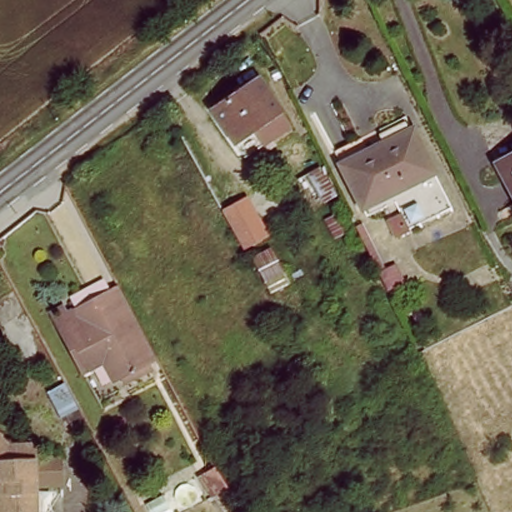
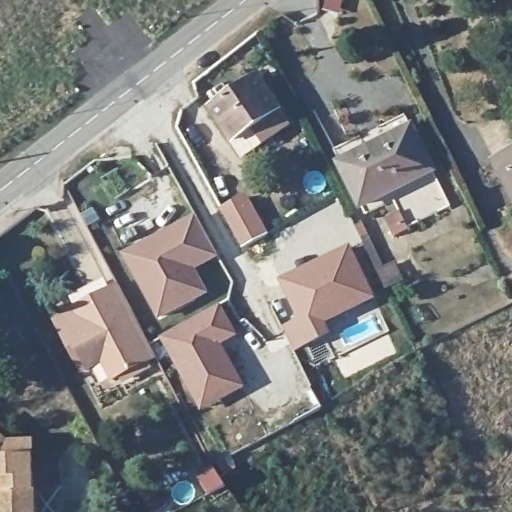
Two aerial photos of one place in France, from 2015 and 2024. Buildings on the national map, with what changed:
unchanged [(281,110),(236,141),(214,107),(259,75),(281,110)]
unchanged [(407,124),(436,183),(368,218),(340,159),(407,124)]
unchanged [(512,156),(512,180),(503,185),(494,165),(512,156)]
unchanged [(231,206),(246,199),(257,221),(242,229),(231,206)]
unchanged [(398,215),(407,233),(393,240),(384,222),(398,215)]
new [(159,322),(122,255),(196,216),(219,258),(197,270),(211,295),(159,322)]
new [(350,243),(378,299),(327,324),(332,334),(292,353),(279,326),(294,316),(276,277),(350,243)]
unchanged [(121,387),(117,380),(112,382),(102,363),(82,374),(48,310),(65,301),(70,311),(118,285),(158,360),(152,363),(154,369),(121,387)]
new [(203,413),(161,340),(222,306),(240,337),(223,347),(247,389),(203,413)]
demolished [(49,352),(25,366),(1,324),(26,310),(49,352)]
unchanged [(37,442),(39,512),(0,512),(0,431),(10,444),(37,442)]

